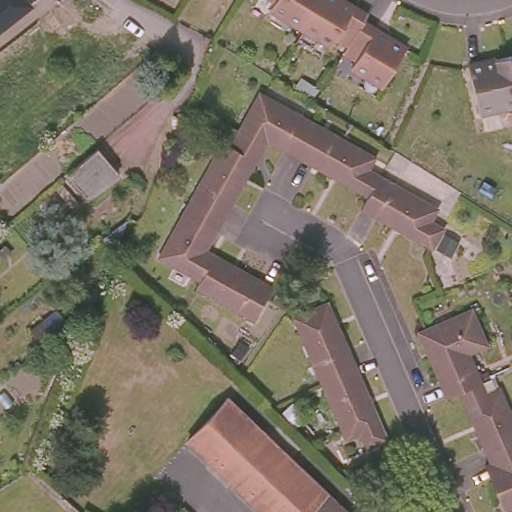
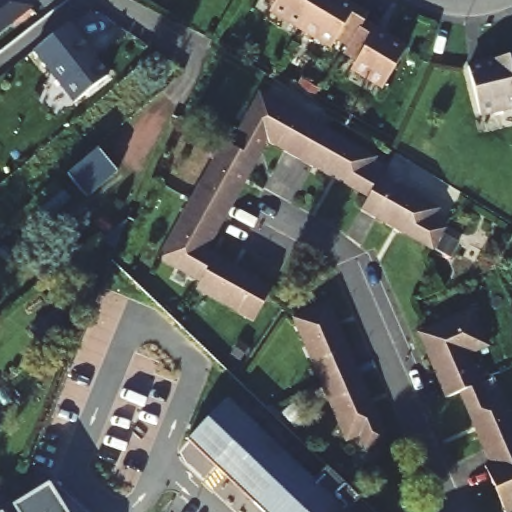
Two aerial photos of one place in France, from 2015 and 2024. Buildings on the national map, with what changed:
unchanged [(35,5),(0,33),(0,0),(31,0),(35,5)]
unchanged [(383,86),(351,67),(355,60),(342,53),(346,46),(334,39),(330,45),(269,8),(273,1),(271,0),(340,0),(353,8),(365,15),(361,22),(373,29),(387,38),(406,49),(383,86)]
new [(68,22),(89,49),(86,50),(106,76),(73,102),(33,50),(68,22)]
unchanged [(512,107),(480,114),(468,66),(512,56),(512,107)]
unchanged [(299,162),(286,155),(269,145),(266,152),(238,136),(261,96),(318,129),(299,162)]
unchanged [(314,171),(299,162),(318,129),(374,162),(366,173),(378,180),(366,200),(314,171)]
unchanged [(226,142),(259,161),(228,217),(195,198),(226,142)]
unchanged [(98,149),(117,170),(88,197),(68,175),(98,149)]
unchanged [(434,212),(428,224),(439,231),(427,251),(380,224),(366,216),(359,212),(366,200),(378,180),(434,212)]
unchanged [(228,217),(213,244),(218,247),(203,275),(164,252),(195,198),(228,217)]
unchanged [(273,279),(270,284),(254,313),(199,282),(203,275),(218,247),(265,274),(273,279)]
unchanged [(293,318),(326,305),(352,363),(319,377),(293,318)]
unchanged [(461,388),(451,392),(444,376),(424,336),(477,313),(492,344),(474,352),(486,377),(461,388)]
unchanged [(352,363),(384,437),(365,444),(360,431),(346,436),(319,377),(352,363)]
unchanged [(491,388),(502,384),(512,407),(512,448),(493,456),(489,448),(461,388),(486,377),(491,388)]
unchanged [(344,512),(265,512),(188,439),(226,400),(344,512)]
unchanged [(499,469),(495,460),(493,456),(512,448),(512,506),(509,508),(494,477),(492,473),(494,472),(499,469)]
new [(2,512),(51,485),(68,512),(2,512)]

